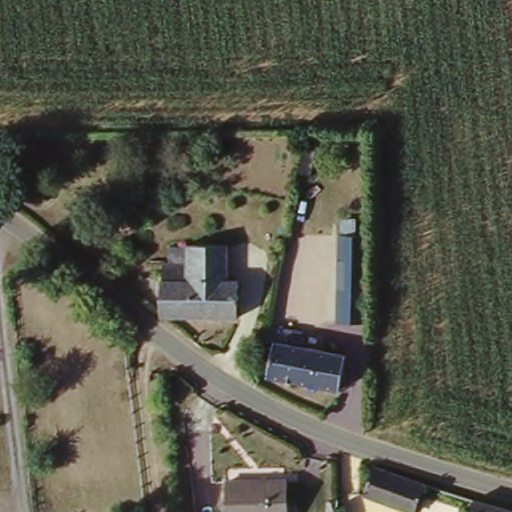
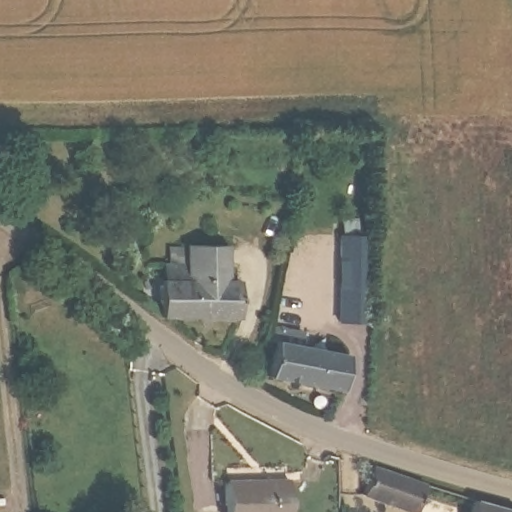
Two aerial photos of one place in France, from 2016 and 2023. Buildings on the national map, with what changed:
unchanged [(342,323),(344,220),(377,221),(376,324),(342,323)]
unchanged [(162,283),(166,282),(166,268),(188,266),(187,247),(230,247),(230,281),(242,282),(242,321),(163,317),(162,283)]
unchanged [(272,375),(276,341),(347,352),(341,386),(272,375)]
unchanged [(381,470),(435,486),(427,512),(417,512),(373,497),(381,470)]
unchanged [(289,492),(292,512),(231,512),(231,494),(289,492)]
unchanged [(512,510),(512,512),(476,512),(479,500),(512,510)]

